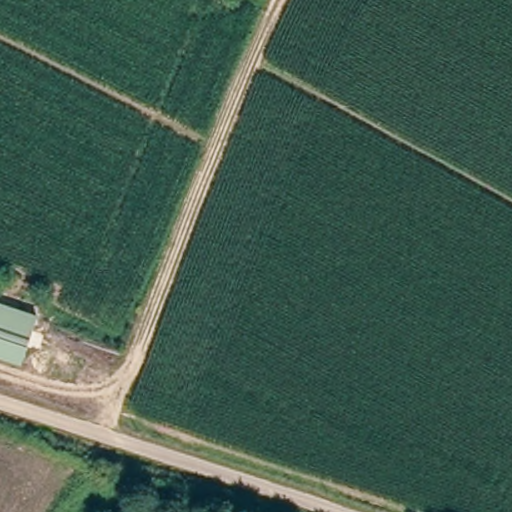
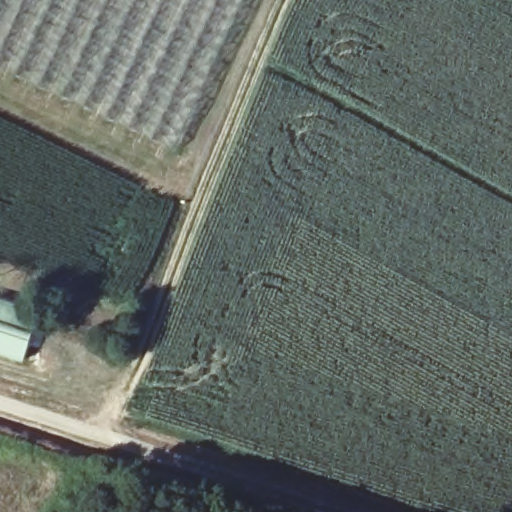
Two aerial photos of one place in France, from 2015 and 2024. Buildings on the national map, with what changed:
unchanged [(19,360),(0,354),(0,302),(34,313),(19,360)]

